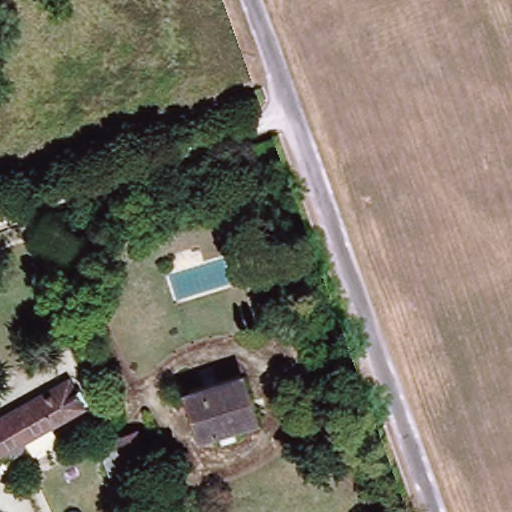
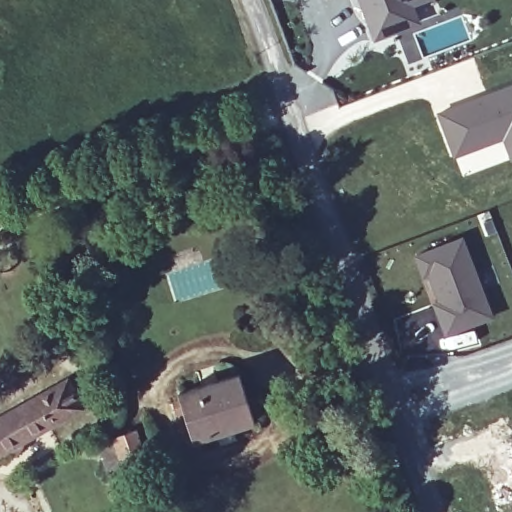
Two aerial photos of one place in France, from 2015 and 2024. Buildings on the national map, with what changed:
new [(395,29),(374,36),(361,0),(419,0),(411,3),(418,21),(395,29)]
new [(468,96),(512,81),(512,159),(510,160),(502,139),(453,157),(435,111),(468,96)]
new [(502,139),(510,160),(462,177),(453,157),(502,139)]
new [(424,274),(418,277),(410,257),(455,239),(487,316),(441,335),(433,315),(429,304),(435,302),(439,312),(424,274)]
unchanged [(254,416),(196,435),(181,392),(238,371),(254,416)]
unchanged [(0,413),(66,376),(83,406),(0,452),(0,413)]
unchanged [(99,442),(116,437),(138,429),(149,460),(127,469),(110,475),(99,442)]
new [(508,434),(512,433),(512,446),(508,434)]
new [(509,498),(512,497),(512,507),(509,498)]

